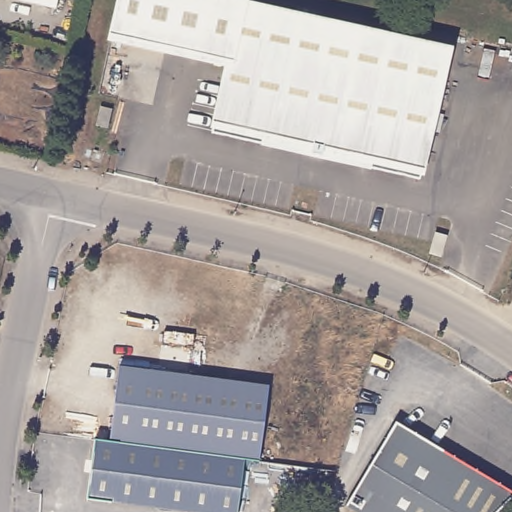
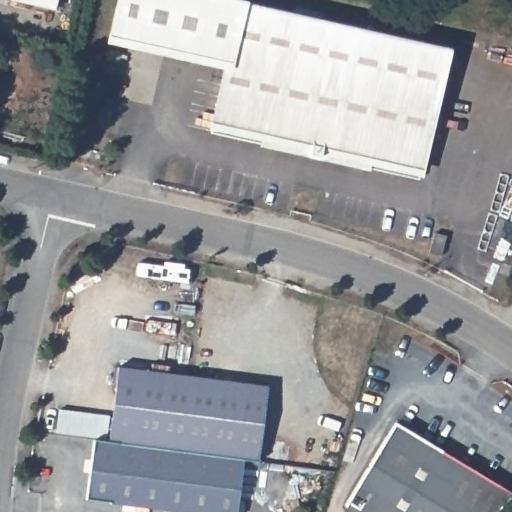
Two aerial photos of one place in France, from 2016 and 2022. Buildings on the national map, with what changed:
unchanged [(5,0),(52,0),(50,10),(5,0)]
unchanged [(233,2),(233,5),(441,51),(413,178),(355,165),(356,156),(316,148),(314,156),(302,153),(304,144),(263,135),(261,144),(206,132),(220,60),(105,35),(113,0),(224,0),(233,2)]
unchanged [(111,110),(107,129),(98,127),(101,109),(111,110)]
unchanged [(168,451),(99,442),(109,367),(259,386),(249,461),(232,459),(168,451)]
unchanged [(391,418),(510,491),(489,512),(357,512),(340,501),(391,418)]
unchanged [(269,432),(266,462),(251,460),(255,430),(269,432)]
unchanged [(179,512),(77,500),(85,440),(99,442),(168,451),(232,459),(225,512),(179,512)]

